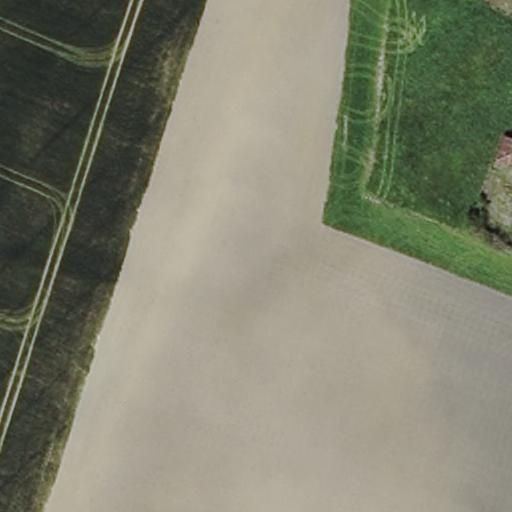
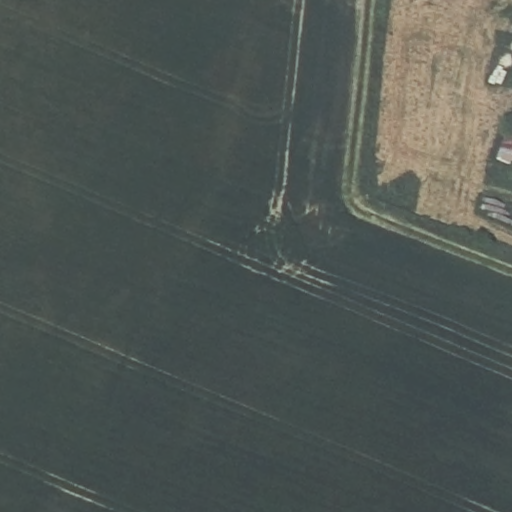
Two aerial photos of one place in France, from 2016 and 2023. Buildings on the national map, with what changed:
unchanged [(510,165),(496,160),(505,136),(512,139),(512,159),(510,165)]

